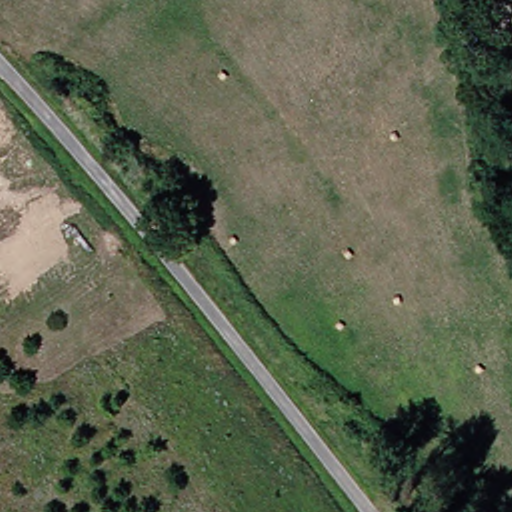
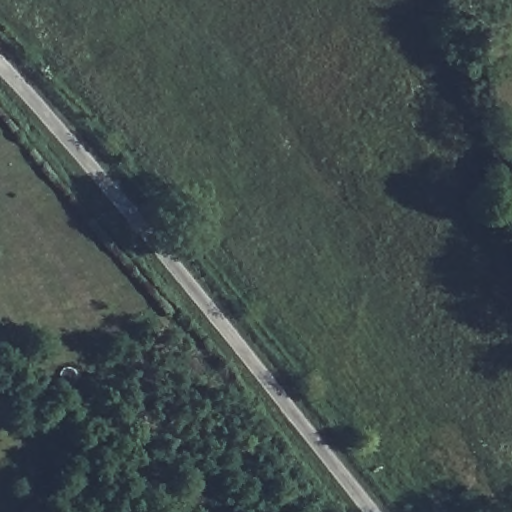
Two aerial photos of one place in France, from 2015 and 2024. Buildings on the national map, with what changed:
[]

